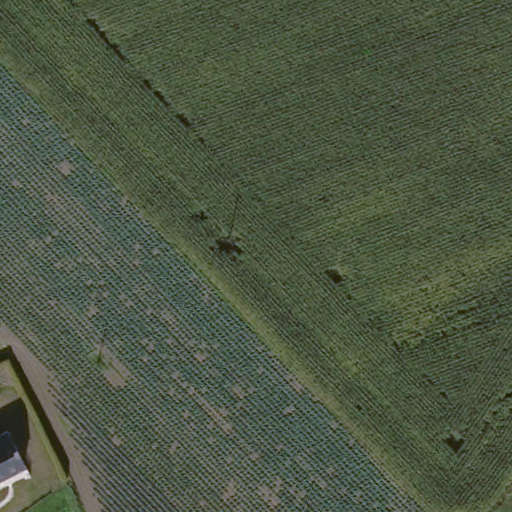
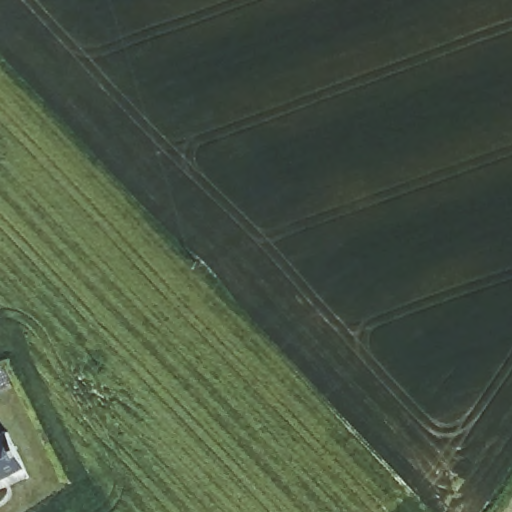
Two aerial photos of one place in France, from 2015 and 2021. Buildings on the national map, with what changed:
unchanged [(25,467),(0,483),(0,422),(25,467)]

